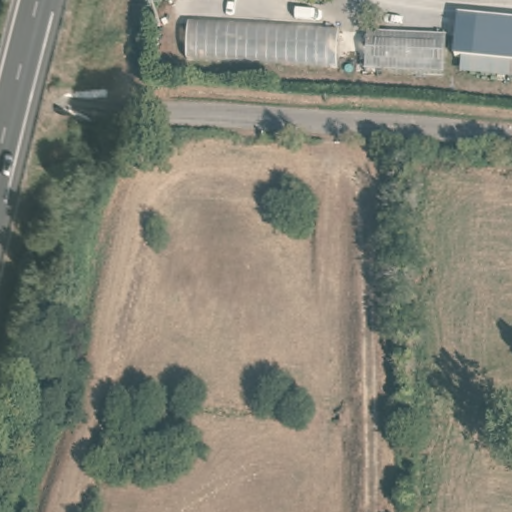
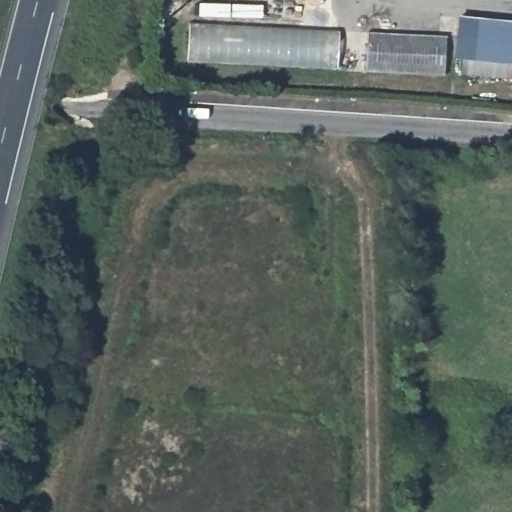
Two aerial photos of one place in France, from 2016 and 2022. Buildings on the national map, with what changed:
unchanged [(512,82),(460,79),(461,57),(456,56),(459,19),(512,23),(512,82)]
unchanged [(333,67),(333,69),(183,59),(185,22),(326,31),(335,31),(333,67)]
unchanged [(442,38),(440,78),(361,73),(363,33),(442,38)]

